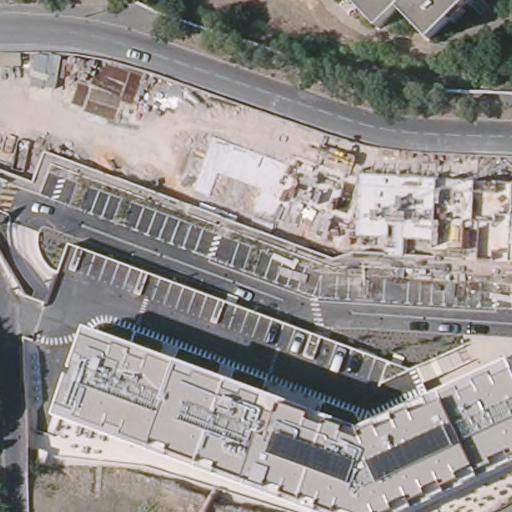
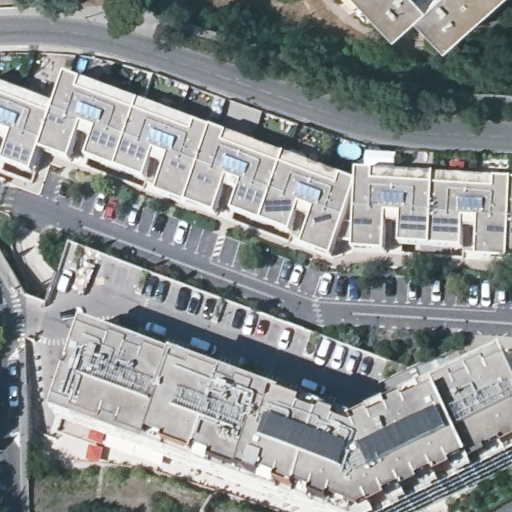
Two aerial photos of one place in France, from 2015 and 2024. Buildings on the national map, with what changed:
unchanged [(471,0),(469,3),(430,40),(400,7),(378,26),(357,4),(353,0),(471,0)]
new [(482,232),(466,231),(465,250),(402,247),(403,243),(389,243),(387,253),(357,252),(357,238),(341,237),(331,259),(304,248),(313,225),(299,219),(292,235),(234,213),(240,197),(227,192),(218,216),(158,196),(167,169),(153,165),(146,181),(88,161),(96,142),(82,137),(72,163),(42,152),(34,174),(4,163),(11,144),(0,139),(0,82),(60,105),(70,76),(215,129),(361,184),(362,171),(512,180),(512,262),(479,260),(482,232)]
unchanged [(512,362),(512,363),(512,465),(410,512),(312,512),(57,418),(90,329),(362,429),(512,362)]

